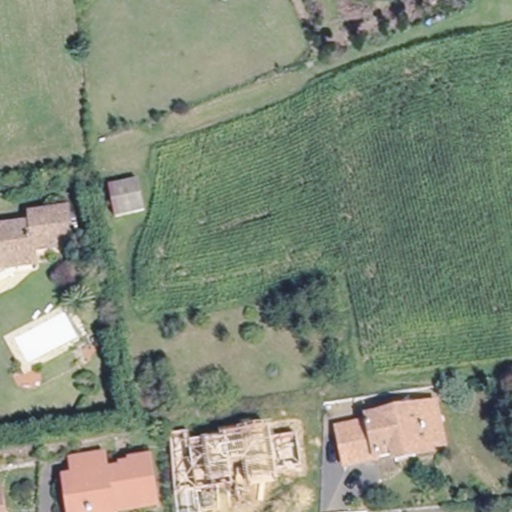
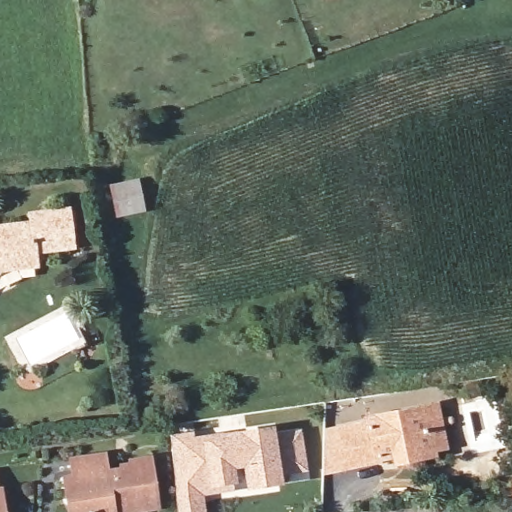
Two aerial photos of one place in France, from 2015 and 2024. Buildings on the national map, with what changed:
unchanged [(139,180),(144,210),(115,216),(109,187),(139,180)]
unchanged [(40,218),(38,209),(63,205),(68,240),(30,246),(31,248),(32,260),(0,264),(0,224),(40,218)]
unchanged [(397,465),(396,457),(379,461),(380,463),(348,469),(340,426),(371,421),(370,418),(425,408),(425,409),(438,407),(445,447),(432,449),(432,451),(416,454),(417,462),(397,465)]
new [(174,495),(169,434),(187,432),(188,442),(268,429),(269,438),(295,434),(300,467),(274,471),(275,479),(247,484),(244,463),(227,465),(230,487),(196,492),(200,512),(177,512),(174,495)]
unchanged [(66,504),(64,489),(73,487),(71,469),(102,464),(104,483),(120,480),(120,476),(130,474),(129,472),(148,469),(154,512),(68,512),(66,504)]

